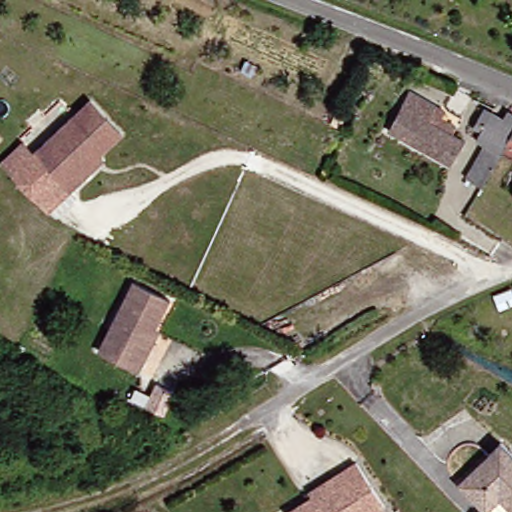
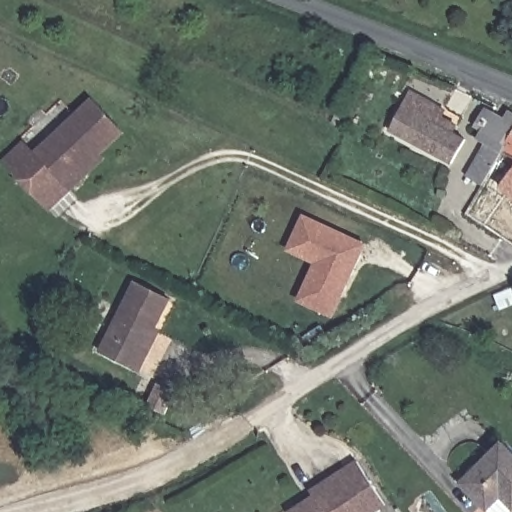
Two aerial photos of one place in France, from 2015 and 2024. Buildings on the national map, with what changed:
unchanged [(409,90),(437,101),(429,117),(480,140),(468,164),(392,130),(409,90)]
unchanged [(84,180),(50,213),(4,166),(26,144),(37,154),(76,116),(92,101),(123,134),(102,156),(106,160),(84,180)]
unchanged [(37,154),(26,144),(22,140),(61,103),(76,116),(37,154)]
unchanged [(481,169),(493,145),(486,140),(497,116),(512,123),(512,152),(510,156),(499,179),(493,191),(474,184),(481,169)]
unchanged [(510,156),(512,152),(512,157),(510,156)]
unchanged [(509,184),(512,179),(512,185),(509,184)]
new [(334,318),(298,301),(312,265),(288,254),(304,214),(368,243),(365,250),(334,318)]
unchanged [(110,349),(146,283),(178,298),(154,349),(161,355),(152,372),(110,349)]
unchanged [(171,400),(160,423),(142,414),(154,391),(171,400)]
unchanged [(512,445),(512,512),(500,512),(471,481),(511,443),(512,445)]
unchanged [(397,504),(385,512),(301,512),(323,497),(317,489),(339,475),(364,457),(397,504)]

